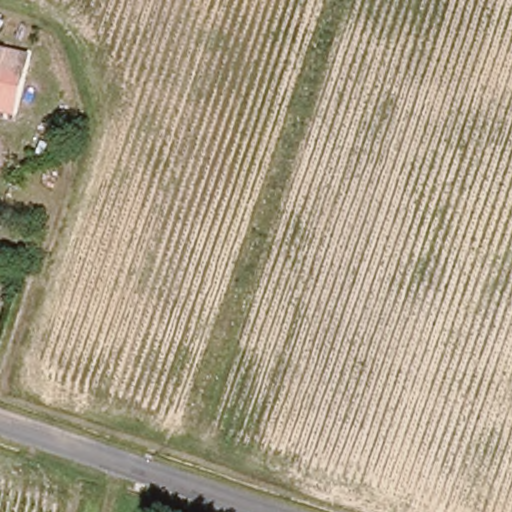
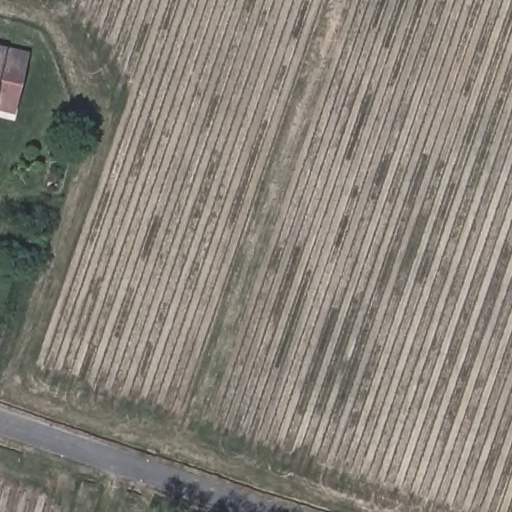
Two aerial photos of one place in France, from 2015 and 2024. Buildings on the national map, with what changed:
unchanged [(28,52),(25,66),(22,77),(2,72),(0,82),(0,46),(28,52)]
unchanged [(29,115),(0,110),(0,84),(34,92),(29,115)]

